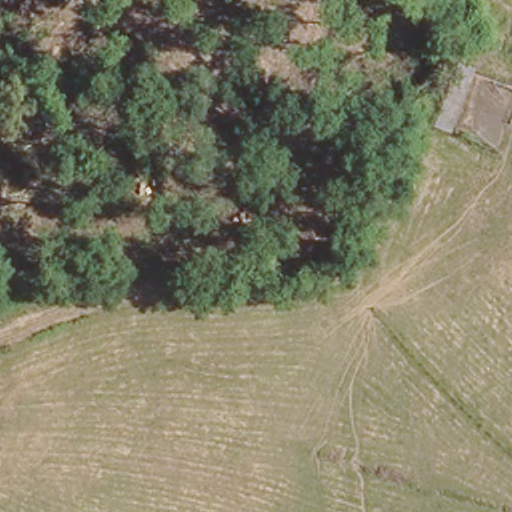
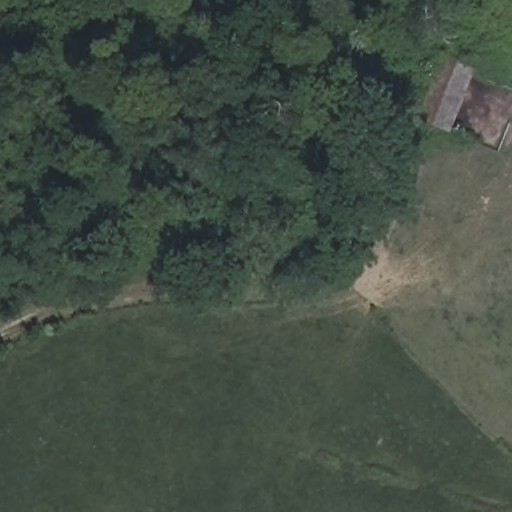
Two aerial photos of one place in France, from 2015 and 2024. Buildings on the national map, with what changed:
unchanged [(420,115),(445,50),(471,60),(448,125),(420,115)]

